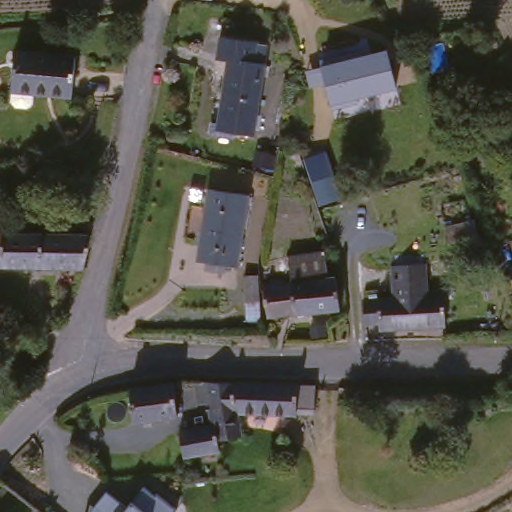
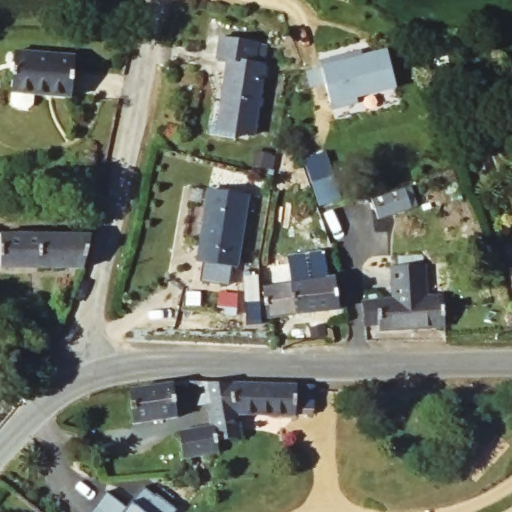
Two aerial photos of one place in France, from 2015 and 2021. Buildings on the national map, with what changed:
unchanged [(214,129),(224,65),(213,64),(216,44),(251,49),(251,50),(261,51),(258,70),(259,70),(249,140),(231,137),(213,135),(214,129)]
unchanged [(326,84),(309,89),(304,70),(386,48),(397,89),(357,99),(358,104),(333,109),(326,84)]
unchanged [(66,61),(62,102),(1,97),(4,57),(66,61)]
unchanged [(302,158),(328,149),(344,201),(319,208),(302,158)]
unchanged [(201,270),(202,261),(193,260),(204,190),(243,196),(232,266),(221,264),(219,273),(201,270)]
unchanged [(473,221),(477,237),(448,244),(444,228),(473,221)]
unchanged [(84,269),(34,268),(1,268),(0,268),(0,234),(1,234),(91,235),(84,269)]
unchanged [(319,258),(323,284),(331,283),(335,315),(262,324),(258,292),(286,288),(282,262),(319,258)]
unchanged [(512,283),(509,269),(512,268),(512,283)]
unchanged [(426,302),(442,301),(444,332),(378,336),(377,329),(363,330),(362,305),(394,304),(392,271),(424,269),(426,302)]
unchanged [(254,306),(241,307),(239,281),(253,281),(254,306)]
unchanged [(324,325),(326,335),(312,338),(310,327),(324,325)]
unchanged [(232,384),(237,414),(241,437),(217,442),(218,452),(202,454),(182,458),(179,432),(211,426),(208,404),(197,406),(194,382),(232,384)]
unchanged [(173,383),(178,417),(133,424),(129,390),(173,383)]
unchanged [(315,386),(314,387),(314,414),(296,413),(296,416),(237,414),(232,384),(315,386)]
unchanged [(127,508),(143,487),(155,497),(157,495),(177,509),(175,512),(90,512),(107,492),(127,508)]

